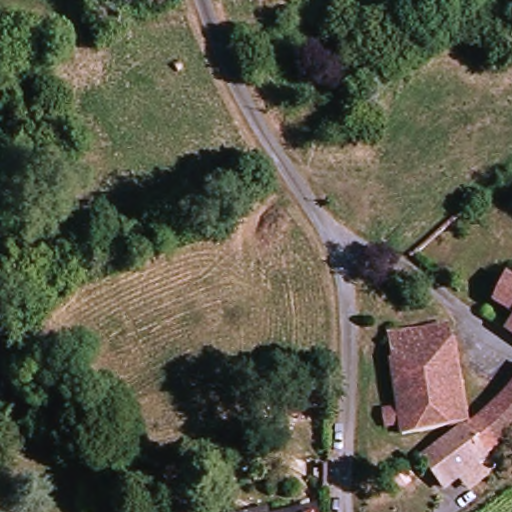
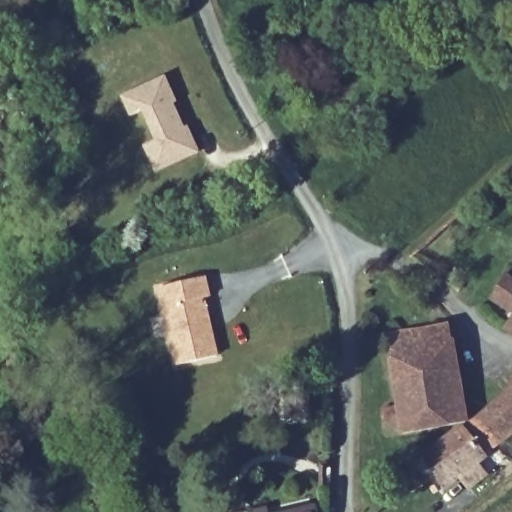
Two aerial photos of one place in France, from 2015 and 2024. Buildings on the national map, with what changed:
new [(171,95),(174,101),(171,102),(182,127),(185,126),(196,151),(155,169),(121,96),(163,77),(171,95)]
unchanged [(511,279),(512,280),(512,315),(494,302),(511,279)]
new [(207,299),(201,300),(205,316),(206,324),(215,357),(175,367),(156,291),(202,280),(207,299)]
unchanged [(407,433),(403,422),(387,425),(386,406),(400,405),(393,334),(451,325),(460,370),(471,425),(407,433)]
unchanged [(509,330),(512,326),(512,333),(509,330)]
unchanged [(501,443),(482,420),(510,389),(512,386),(512,431),(501,443)]
new [(304,395),(307,422),(285,425),(282,398),(304,395)]
unchanged [(482,420),(501,443),(449,481),(426,453),(471,425),(482,420)]
unchanged [(321,506),(321,512),(288,512),(321,506)]

